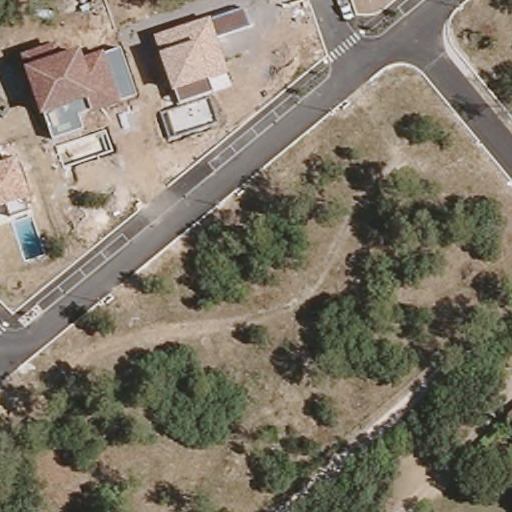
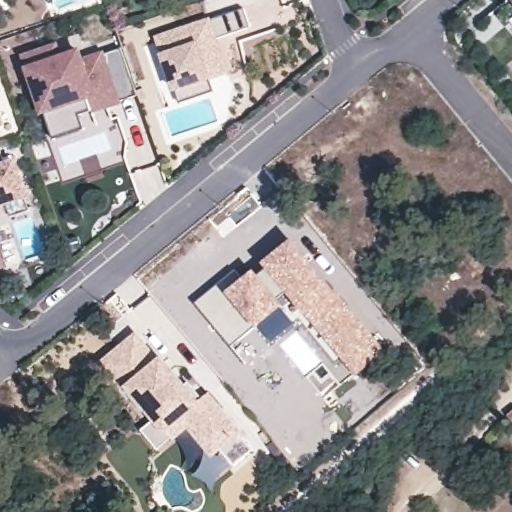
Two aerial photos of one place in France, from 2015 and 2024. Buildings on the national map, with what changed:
new [(8,0),(0,3),(0,0),(8,0)]
new [(512,0),(512,3),(509,0),(512,0)]
unchanged [(162,56),(155,39),(210,20),(246,10),(250,27),(218,37),(229,74),(211,80),(215,92),(180,104),(175,93),(162,56)]
unchanged [(26,70),(22,56),(58,43),(62,56),(82,50),(85,59),(120,47),(136,95),(121,99),(123,104),(81,117),(85,130),(54,140),(45,115),(43,116),(26,70)]
new [(7,126),(0,129),(0,106),(7,126)]
unchanged [(4,164),(19,159),(31,200),(26,201),(30,211),(11,217),(8,207),(0,209),(0,155),(4,164)]
new [(288,291),(269,267),(266,263),(292,242),(380,350),(361,366),(354,372),(306,312),(288,291)]
new [(244,282),(254,273),(257,277),(269,267),(288,291),(276,301),(280,306),(230,347),(194,303),(234,270),(244,282)]
new [(138,432),(152,419),(144,411),(142,413),(123,392),(125,390),(101,364),(134,335),(159,362),(161,360),(183,386),(188,382),(202,398),(250,452),(232,468),(215,450),(210,455),(185,427),(169,438),(155,451),(138,432)]
unchanged [(512,407),(512,429),(504,413),(512,407)]

